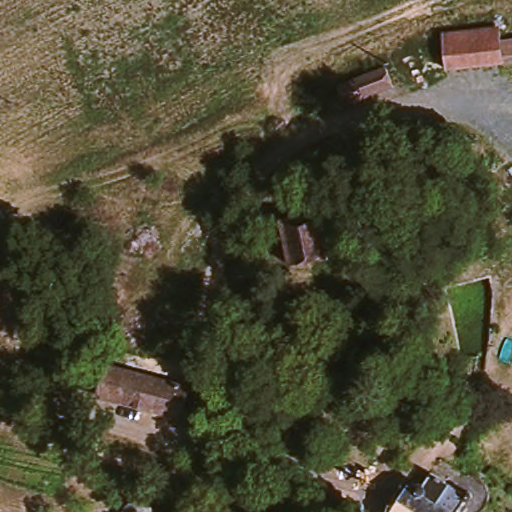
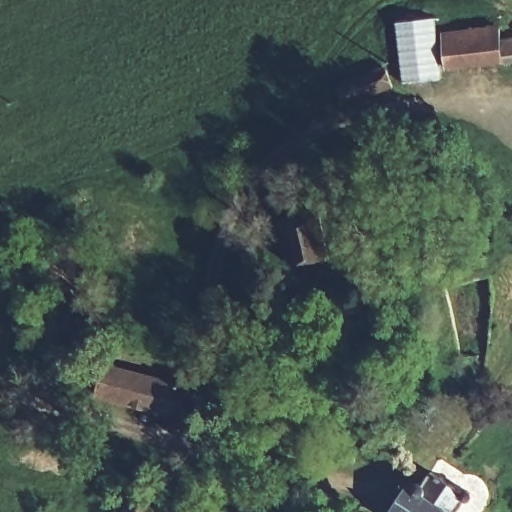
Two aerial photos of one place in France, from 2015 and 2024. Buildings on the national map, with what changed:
new [(435,18),(436,50),(440,79),(402,83),(396,22),(435,18)]
unchanged [(437,30),(492,24),(493,36),(496,58),(441,65),(437,30)]
unchanged [(496,58),(493,36),(512,34),(512,56),(496,58)]
unchanged [(335,83),(388,63),(392,80),(342,101),(335,83)]
unchanged [(288,263),(287,218),(325,217),(326,263),(288,263)]
unchanged [(102,362),(182,379),(175,410),(95,394),(102,362)]
unchanged [(412,481),(423,488),(434,471),(469,493),(459,511),(458,512),(393,512),(412,481)]
unchanged [(157,512),(122,512),(122,511),(127,503),(134,498),(140,497),(146,498),(154,503),(157,512)]

